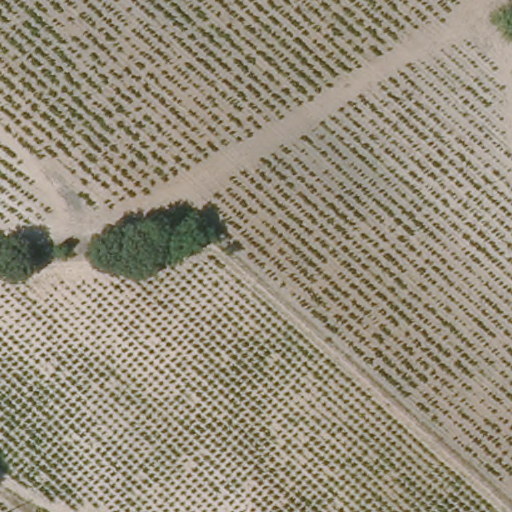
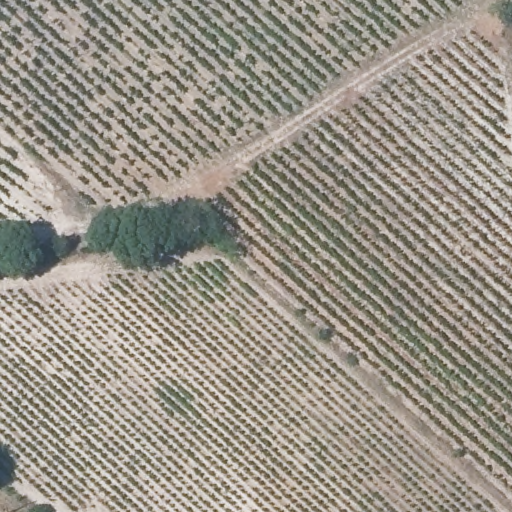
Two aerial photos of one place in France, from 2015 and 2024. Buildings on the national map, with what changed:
unchanged [(197,227),(173,250),(159,236),(183,212),(197,227)]

